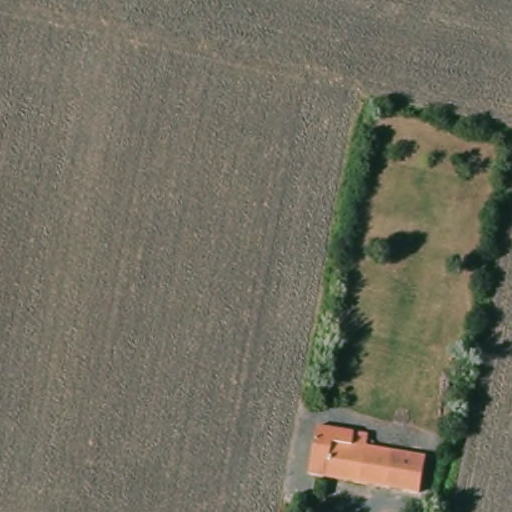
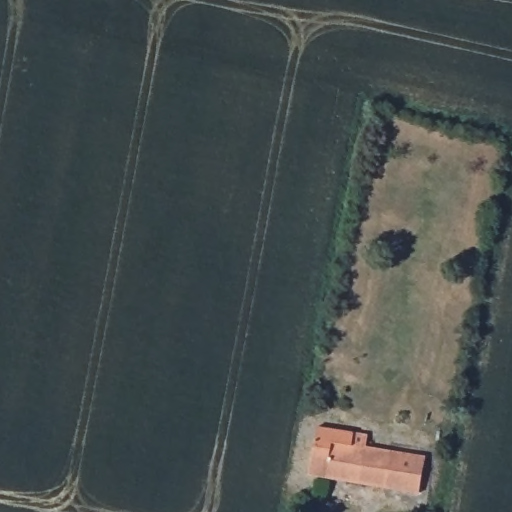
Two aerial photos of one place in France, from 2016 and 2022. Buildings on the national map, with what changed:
unchanged [(312,476),(322,425),(412,439),(409,458),(433,463),(427,497),(418,496),(312,476)]

